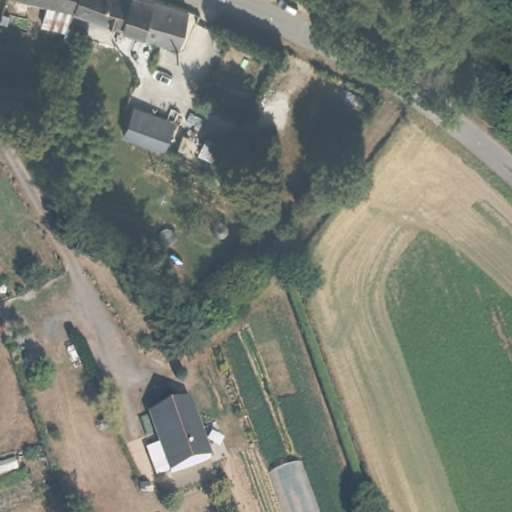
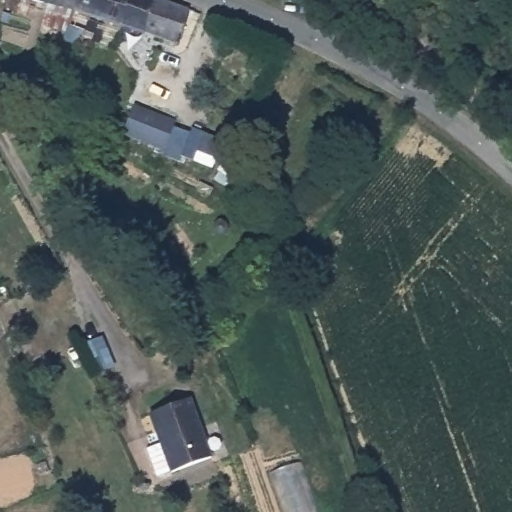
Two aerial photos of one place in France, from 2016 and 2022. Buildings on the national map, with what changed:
unchanged [(73,28),(72,32),(44,25),(48,1),(43,0),(81,0),(79,12),(73,28)]
unchanged [(89,15),(79,12),(81,0),(162,0),(187,8),(176,41),(89,15)]
unchanged [(136,107),(171,122),(160,147),(124,133),(136,107)]
unchanged [(150,446),(165,439),(152,406),(192,392),(216,448),(163,472),(150,446)]

